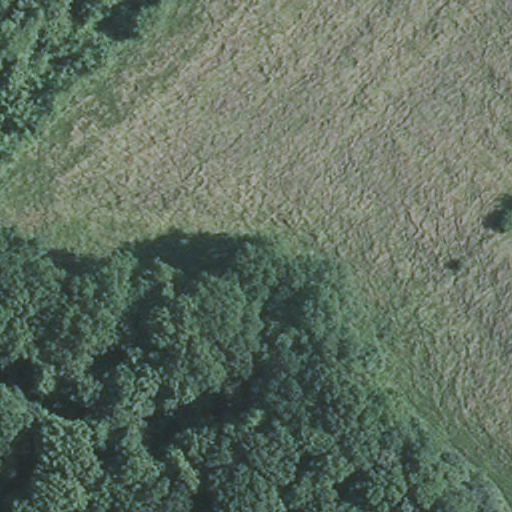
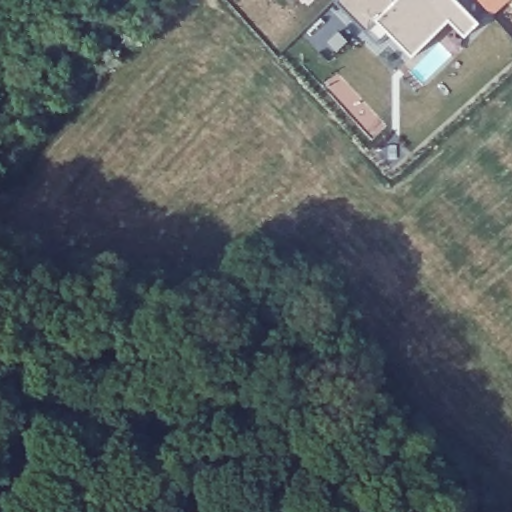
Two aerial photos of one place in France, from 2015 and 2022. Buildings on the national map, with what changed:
new [(464,35),(448,19),(411,55),(387,30),(376,42),(335,1),(336,0),(397,0),(454,0),(477,23),(464,35)]
new [(491,14),(478,0),(505,0),(491,14)]
new [(512,6),(506,0),(512,0),(512,6)]

